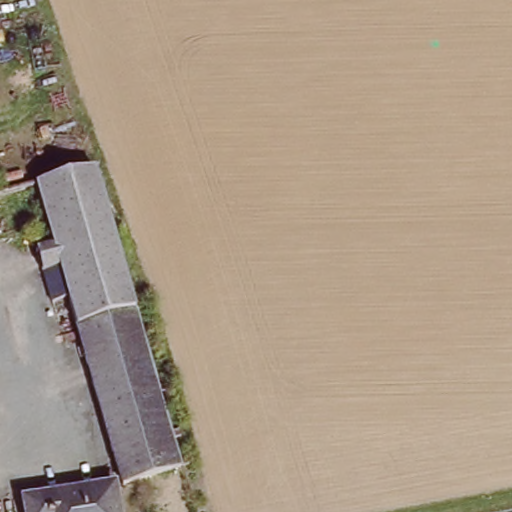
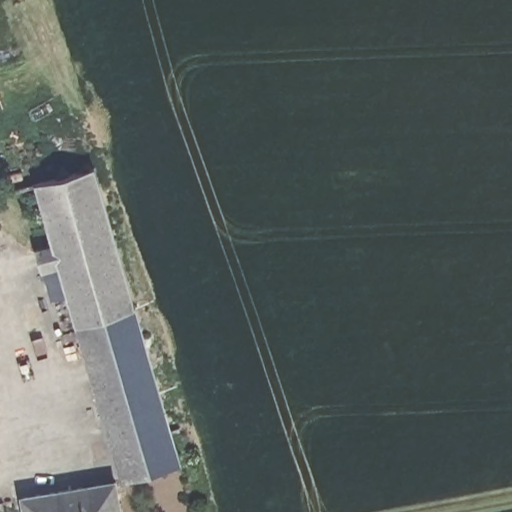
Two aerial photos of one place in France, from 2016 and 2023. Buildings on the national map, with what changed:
unchanged [(186,469),(126,482),(59,272),(38,274),(30,254),(52,248),(32,182),(98,167),(186,469)]
unchanged [(3,235),(0,236),(0,226),(3,235)]
unchanged [(122,512),(25,512),(21,497),(112,479),(122,512)]

